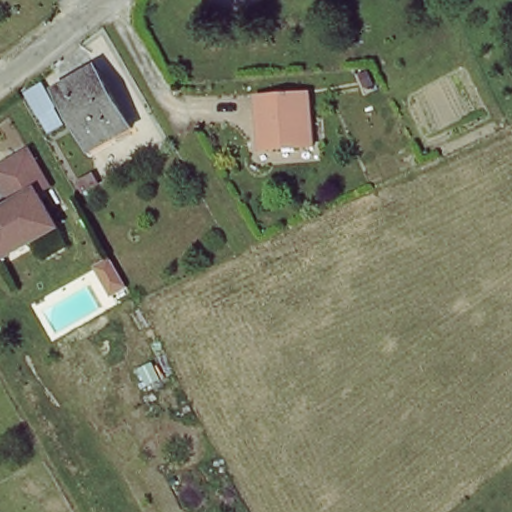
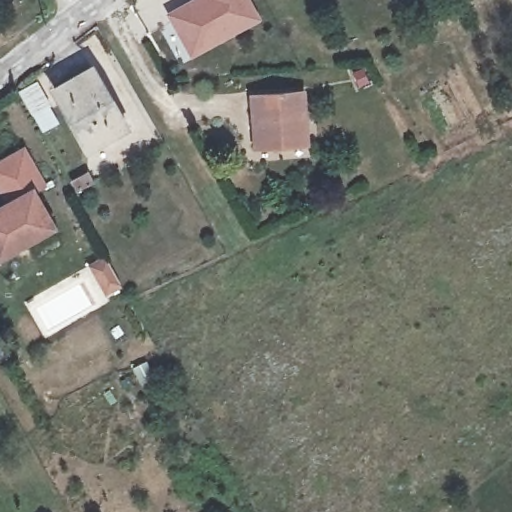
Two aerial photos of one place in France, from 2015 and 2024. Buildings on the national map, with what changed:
new [(187,0),(252,0),(264,20),(190,60),(165,13),(187,0)]
unchanged [(125,121),(85,143),(56,83),(95,63),(125,121)]
unchanged [(57,121),(43,128),(31,102),(44,95),(57,121)]
unchanged [(256,137),(254,107),(254,98),(272,98),(306,96),(309,147),(272,149),(257,150),(256,137)]
unchanged [(46,187),(36,194),(56,229),(2,260),(0,256),(0,214),(13,207),(0,184),(0,169),(4,168),(28,152),(46,187)]
unchanged [(71,171),(89,162),(95,171),(76,181),(71,171)]

